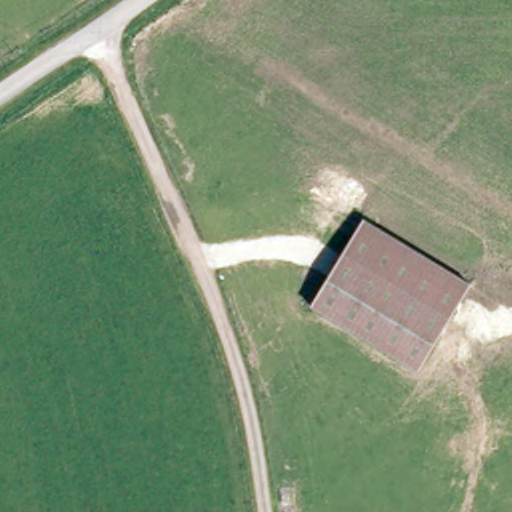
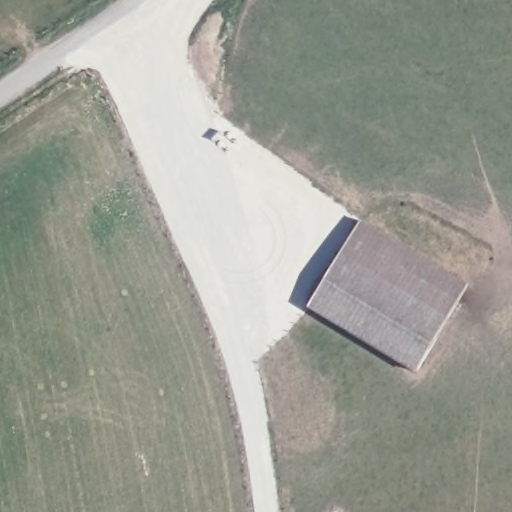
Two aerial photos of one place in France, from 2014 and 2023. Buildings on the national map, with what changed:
unchanged [(367,220),(478,285),(458,317),(350,250),(367,220)]
unchanged [(458,317),(423,373),(313,312),(350,250),(458,317)]

